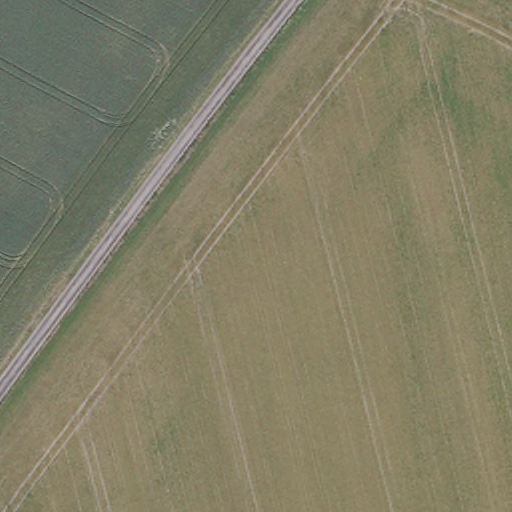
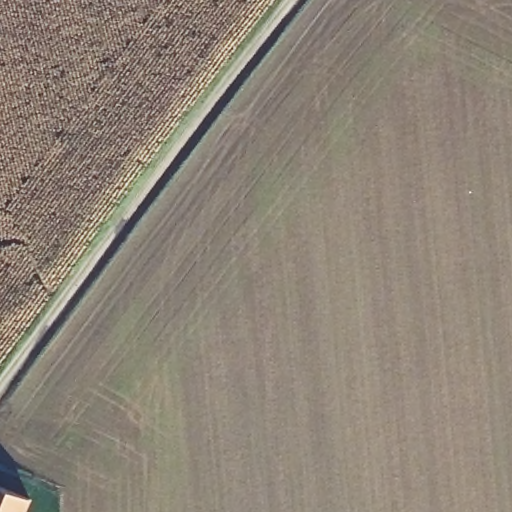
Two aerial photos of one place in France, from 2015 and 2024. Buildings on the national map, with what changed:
new [(32,499),(26,512),(0,512),(0,485),(32,499)]

